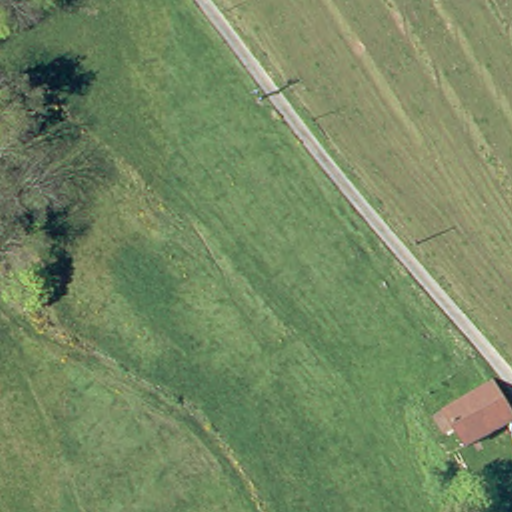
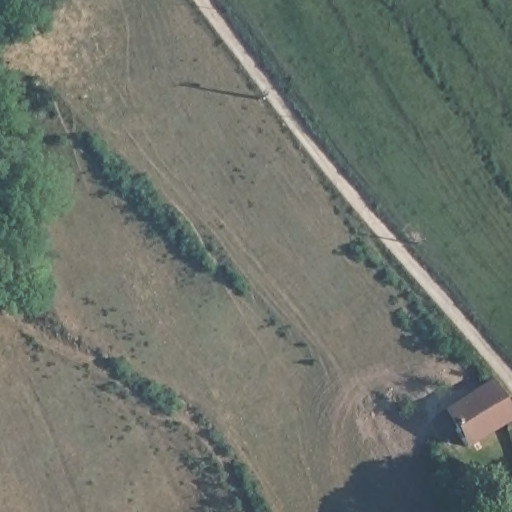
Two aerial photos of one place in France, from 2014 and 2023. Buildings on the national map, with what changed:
unchanged [(437,418),(445,412),(484,387),(505,422),(466,446),(454,426),(445,431),(437,418)]

